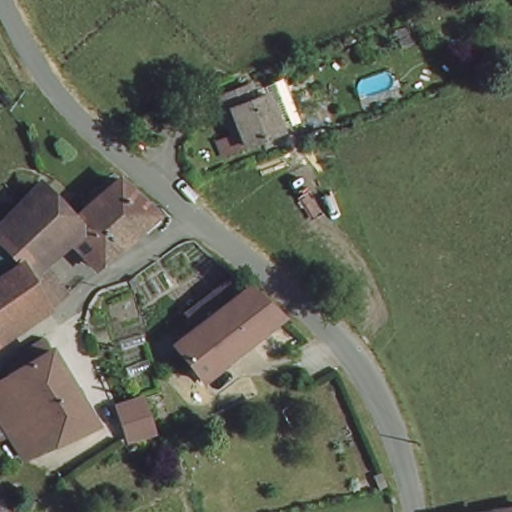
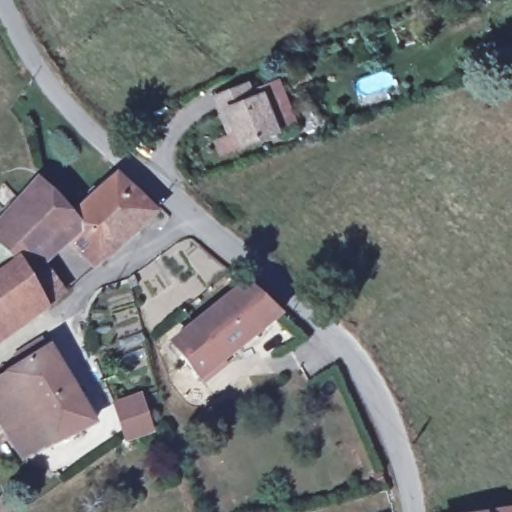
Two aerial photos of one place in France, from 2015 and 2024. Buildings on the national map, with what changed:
unchanged [(210,140),(228,135),(209,97),(260,75),(267,89),(283,135),(218,161),(210,140)]
unchanged [(48,191),(70,216),(35,250),(49,265),(68,290),(48,308),(41,298),(15,263),(0,243),(0,219),(39,181),(48,191)]
unchanged [(71,245),(49,265),(35,250),(70,216),(88,204),(84,198),(94,187),(100,193),(115,181),(148,214),(103,255),(91,267),(71,245)]
unchanged [(0,274),(15,263),(41,298),(0,326),(0,274)]
unchanged [(146,282),(132,291),(129,280),(142,271),(146,282)]
unchanged [(238,288),(183,329),(170,315),(226,274),(238,288)]
unchanged [(273,317),(186,384),(172,368),(179,362),(163,343),(183,329),(238,288),(273,317)]
unchanged [(91,422),(50,446),(23,401),(12,408),(0,389),(0,380),(47,351),(91,422)]
unchanged [(122,441),(106,399),(138,388),(155,429),(122,441)]
unchanged [(23,401),(50,446),(25,464),(0,425),(0,389),(12,408),(23,401)]
unchanged [(434,510),(512,498),(512,512),(434,512),(434,510)]

